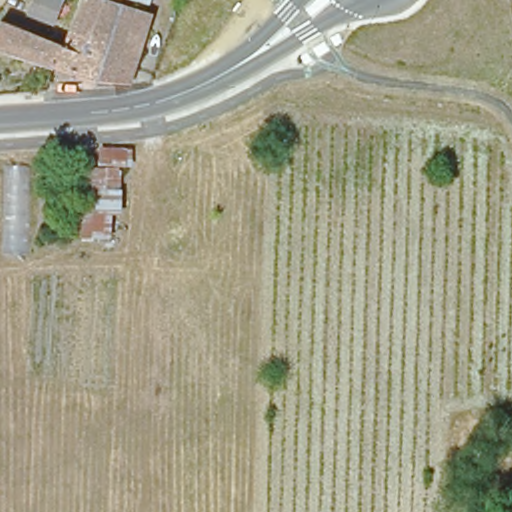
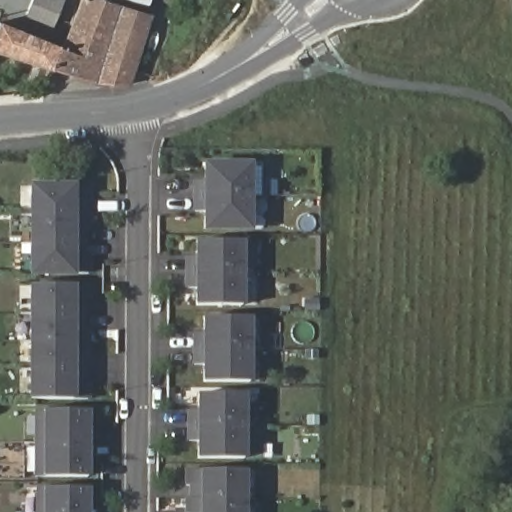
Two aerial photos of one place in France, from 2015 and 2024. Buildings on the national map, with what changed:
unchanged [(125,79),(124,83),(119,83),(109,81),(91,77),(0,50),(0,22),(61,41),(63,37),(75,0),(105,0),(148,15),(125,79)]
unchanged [(51,24),(20,13),(26,0),(60,0),(51,24)]
unchanged [(148,5),(134,0),(150,0),(148,5)]
new [(252,162),(251,231),(202,231),(203,161),(252,162)]
demolished [(0,255),(0,166),(27,167),(25,254),(0,255)]
new [(78,184),(91,185),(92,275),(75,275),(29,275),(30,184),(78,184)]
new [(243,241),(244,306),(195,305),(194,240),(243,241)]
new [(76,284),(91,284),(91,399),(74,399),(29,399),(29,283),(76,284)]
new [(252,316),(252,381),(203,381),(203,316),(252,316)]
new [(245,394),(245,458),(197,458),(197,393),(245,394)]
new [(89,411),(89,476),(37,476),(36,411),(89,411)]
new [(248,470),(248,512),(185,512),(185,470),(199,470),(248,470)]
new [(89,512),(38,512),(38,487),(89,488),(89,512)]

